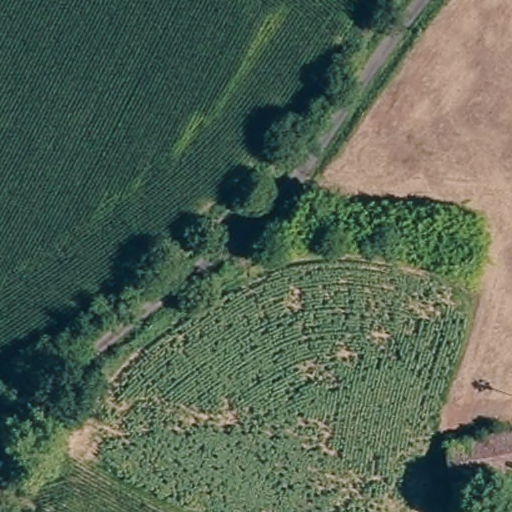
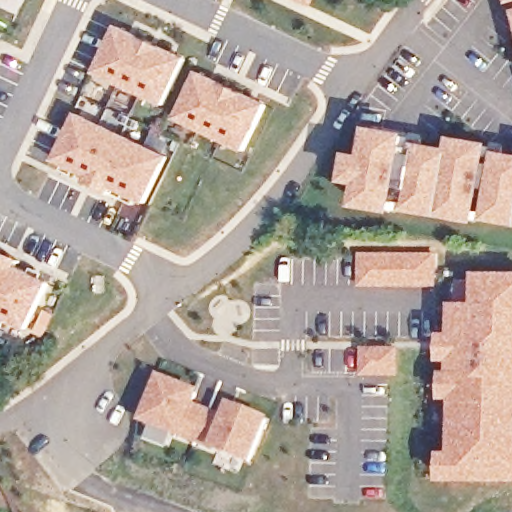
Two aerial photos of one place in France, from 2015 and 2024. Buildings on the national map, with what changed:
new [(166,107),(96,74),(120,27),(189,61),(166,107)]
new [(247,152),(177,119),(200,72),(270,106),(247,152)]
new [(149,206),(55,162),(78,114),(171,157),(149,206)]
new [(491,191),(486,190),(478,227),(408,212),(413,192),(406,191),(403,210),(394,218),(361,212),(357,205),(360,191),(347,181),(352,157),(367,150),(369,135),(376,129),(408,134),(415,141),(412,156),(422,157),(423,146),(451,150),(452,139),(494,146),(491,165),(497,166),(499,153),(512,155),(512,225),(486,220),(491,191)]
new [(23,262),(20,268),(51,283),(30,330),(0,316),(0,251),(23,262)]
new [(434,255),(435,285),(361,285),(361,256),(434,255)]
new [(456,456),(456,398),(445,398),(445,377),(456,377),(456,362),(445,362),(445,340),(456,340),(456,310),(459,310),(459,282),(479,282),(479,275),(512,275),(512,479),(456,479),(445,479),(445,456),(456,456)]
new [(398,349),(398,374),(364,374),(364,349),(398,349)]
new [(194,394),(189,407),(206,413),(194,442),(178,435),(178,436),(141,422),(158,380),(194,394)]
new [(223,421),(228,407),(266,422),(247,466),(211,450),(212,449),(194,442),(206,413),(223,421)]
demolished [(476,497),(459,500),(450,443),(458,442),(512,431),(512,470),(472,478),(476,497)]

